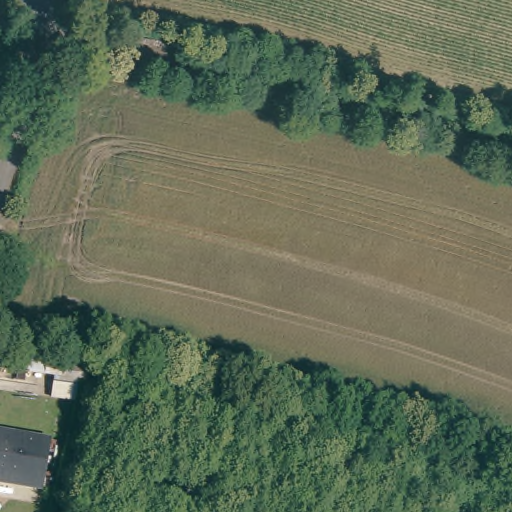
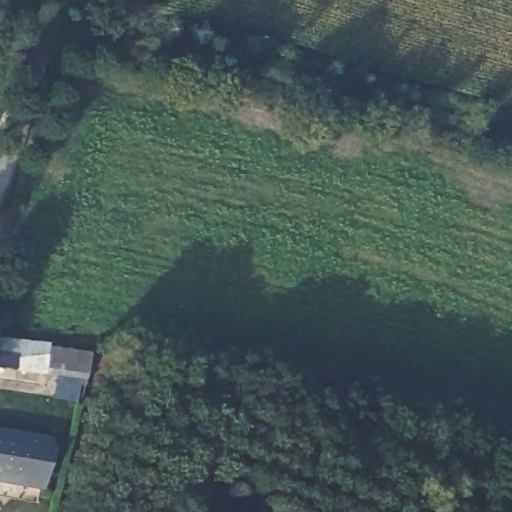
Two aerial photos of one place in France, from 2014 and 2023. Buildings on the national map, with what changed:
unchanged [(0,476),(0,427),(49,437),(39,484),(0,476)]

